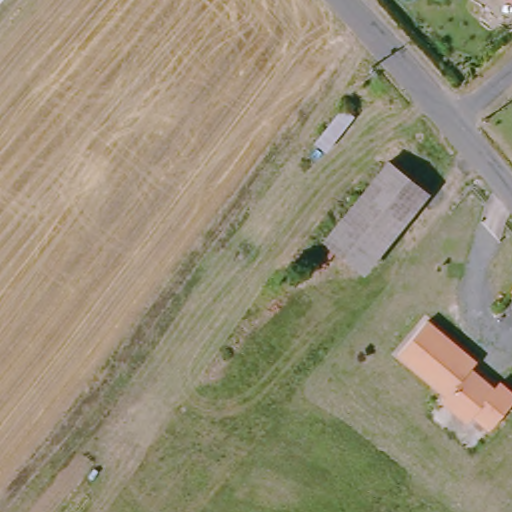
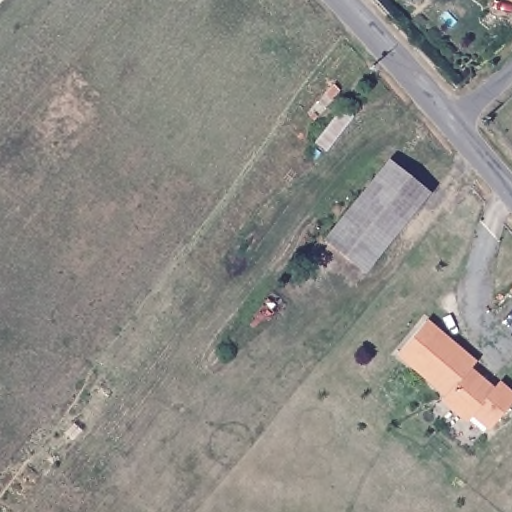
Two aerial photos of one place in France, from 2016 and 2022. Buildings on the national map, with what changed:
unchanged [(384,161),(421,192),(355,271),(319,242),(384,161)]
unchanged [(512,288),(512,295),(508,292),(512,288)]
unchanged [(428,321),(462,350),(477,364),(471,370),(495,391),(500,384),(512,394),(512,405),(492,428),(490,429),(475,415),(468,422),(443,400),(448,395),(434,383),(400,354),(428,321)]

